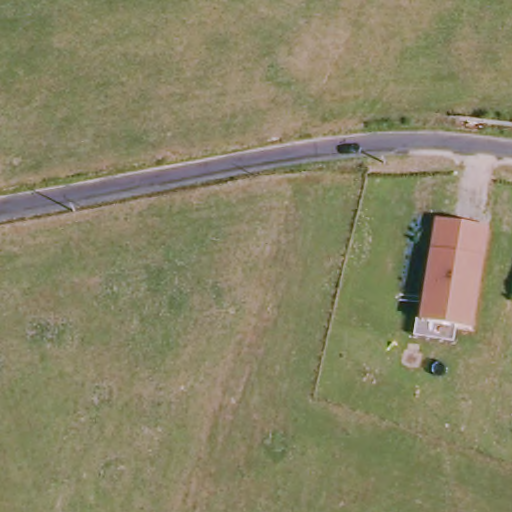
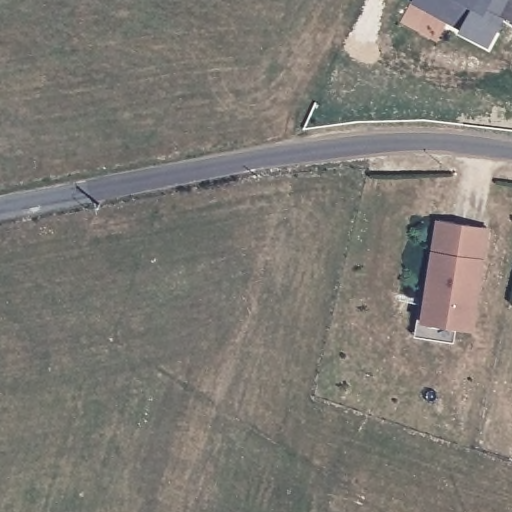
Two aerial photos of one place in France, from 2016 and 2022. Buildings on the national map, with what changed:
new [(412,3),(414,0),(508,0),(500,15),(505,18),(489,46),(412,3)]
unchanged [(427,299),(440,220),(487,228),(471,330),(428,324),(423,323),(427,299)]

